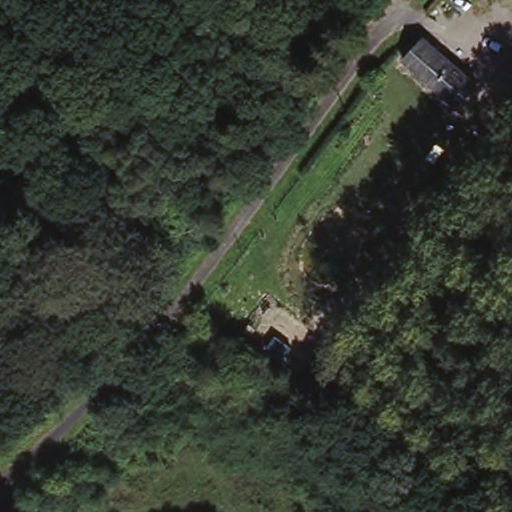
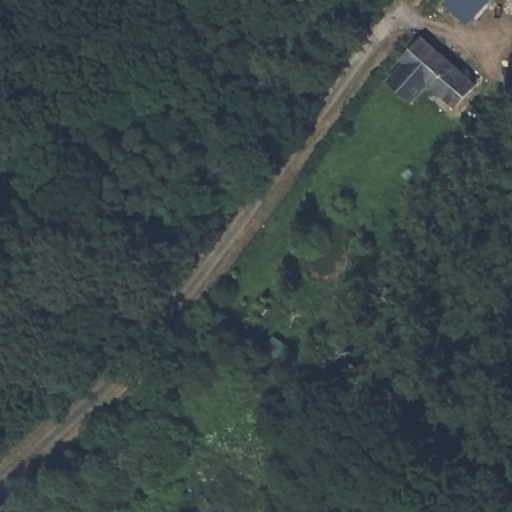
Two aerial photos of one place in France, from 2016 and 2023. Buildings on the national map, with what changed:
new [(449,0),(495,0),(469,29),(444,7),(449,0)]
unchanged [(424,42),(470,92),(451,114),(401,67),(424,42)]

